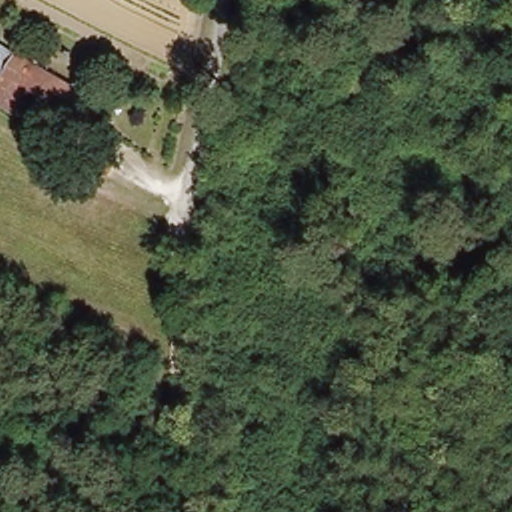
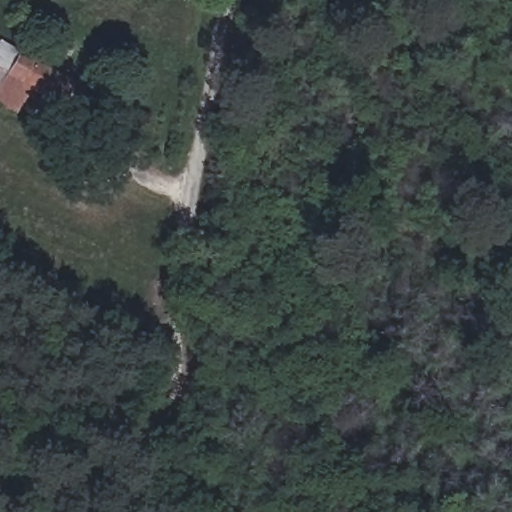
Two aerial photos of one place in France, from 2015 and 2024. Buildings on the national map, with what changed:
unchanged [(90,89),(80,106),(40,85),(34,97),(22,90),(14,105),(0,97),(0,75),(15,47),(74,80),(79,69),(95,77),(90,89)]
unchanged [(40,85),(80,106),(69,128),(27,108),(34,97),(40,85)]
unchanged [(119,155),(111,175),(90,166),(98,147),(119,155)]

